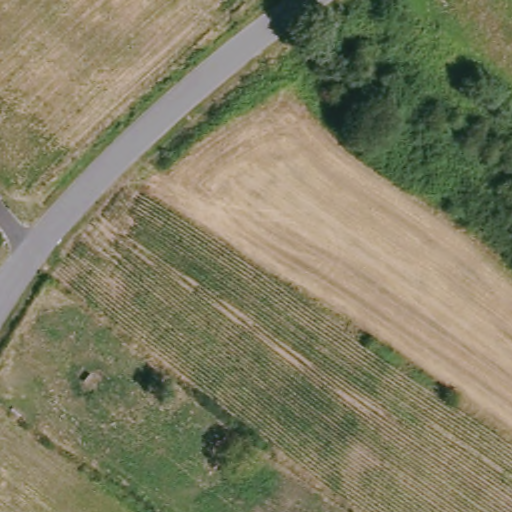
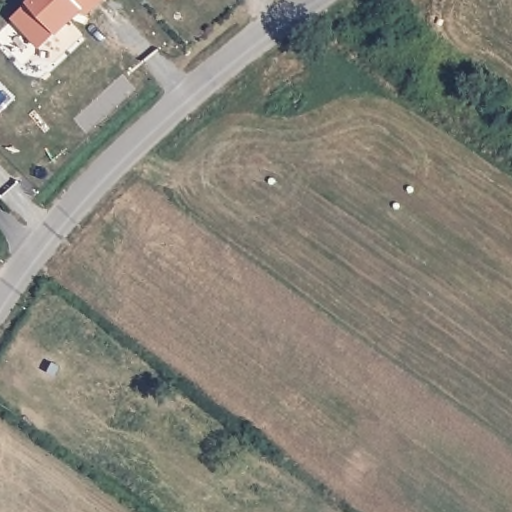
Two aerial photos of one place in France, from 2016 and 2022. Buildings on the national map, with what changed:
new [(12,18),(30,0),(103,0),(90,14),(85,9),(40,47),(12,18)]

